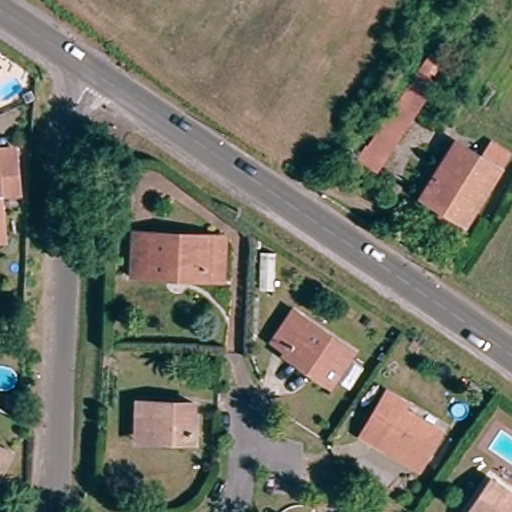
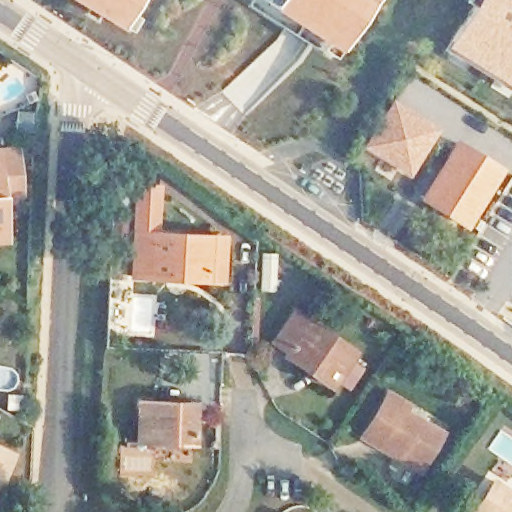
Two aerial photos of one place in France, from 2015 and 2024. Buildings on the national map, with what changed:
new [(122,27),(71,0),(139,0),(122,27)]
new [(336,48),(269,7),(274,0),(367,0),(336,48)]
new [(467,51),(469,47),(464,55),(452,48),(457,40),(483,0),(512,0),(512,77),(511,79),(467,51)]
new [(480,5),(471,0),(483,0),(480,5)]
new [(512,77),(512,86),(508,82),(512,77)]
new [(441,129),(412,176),(360,145),(392,100),(441,129)]
demolished [(370,172),(353,162),(383,114),(400,124),(370,172)]
unchanged [(417,194),(448,142),(474,159),(482,146),(500,158),(492,170),(462,221),(417,194)]
unchanged [(8,155),(12,200),(0,201),(0,155),(8,155)]
unchanged [(132,275),(135,232),(209,237),(224,237),(222,280),(207,279),(187,278),(170,277),(132,275)]
unchanged [(276,252),(277,290),(262,290),(261,252),(276,252)]
unchanged [(282,360),(285,355),(272,346),(291,316),(352,354),(330,390),(313,379),(302,372),(282,360)]
unchanged [(380,447),(362,435),(346,424),(363,397),(380,408),(390,394),(407,406),(403,412),(441,437),(423,465),(417,473),(380,447)]
unchanged [(132,439),(133,405),(192,407),(192,448),(147,446),(132,445),(132,439)]
unchanged [(7,455),(2,463),(0,469),(0,451),(7,455)]
unchanged [(486,471),(491,475),(512,489),(512,511),(511,512),(457,512),(470,493),(486,471)]

